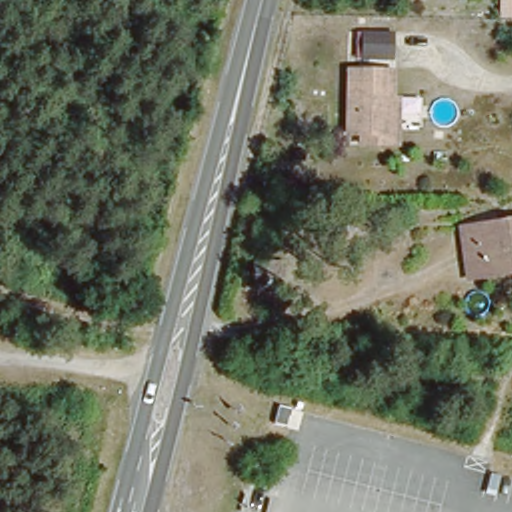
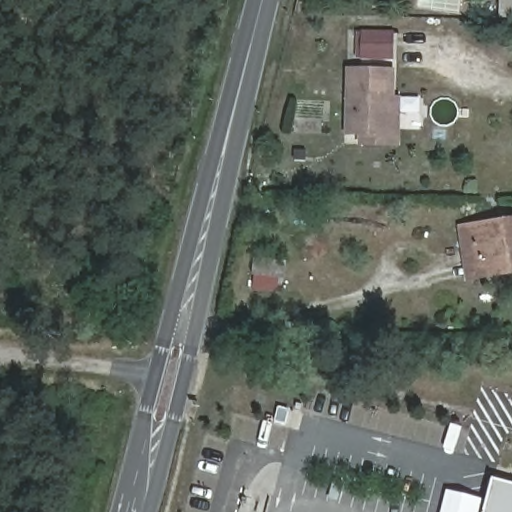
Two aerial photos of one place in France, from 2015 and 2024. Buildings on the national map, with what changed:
unchanged [(392,29),(392,58),(358,57),(360,28),(392,29)]
unchanged [(397,141),(361,142),(361,131),(348,131),(349,68),(391,69),(390,95),(398,95),(397,141)]
unchanged [(464,247),(461,225),(512,219),(512,270),(468,276),(464,247)]
unchanged [(249,289),(250,273),(252,256),(252,251),(285,254),(284,259),(282,276),(280,291),(249,289)]
new [(512,485),(512,512),(483,512),(492,479),(512,485)]
new [(479,512),(442,512),(447,490),(482,499),(479,512)]

